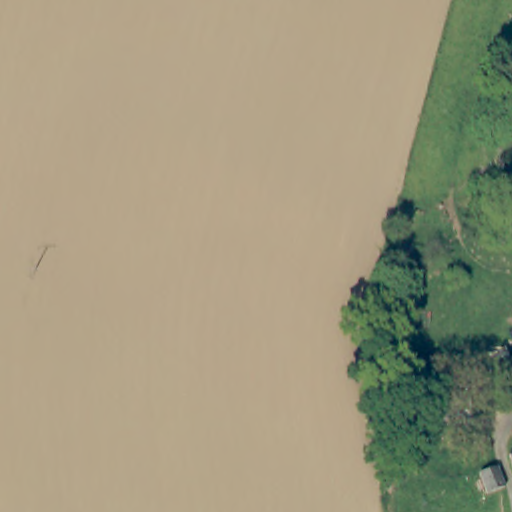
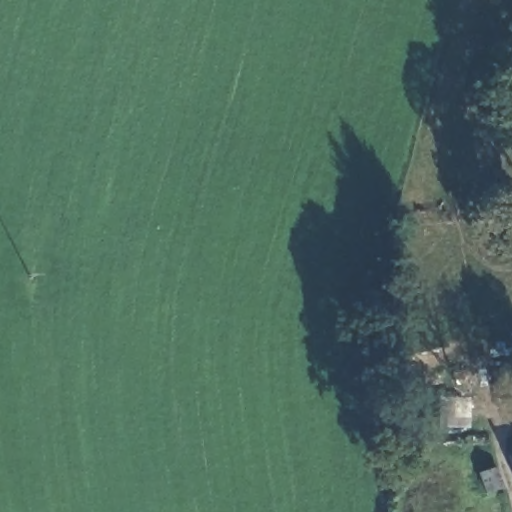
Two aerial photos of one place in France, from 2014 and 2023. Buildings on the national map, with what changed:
unchanged [(512,445),(512,483),(501,449),(512,445)]
unchanged [(473,473),(484,470),(492,467),(500,487),(480,493),(473,473)]

